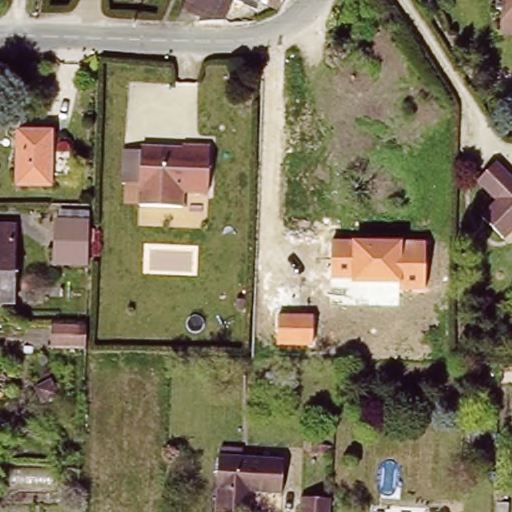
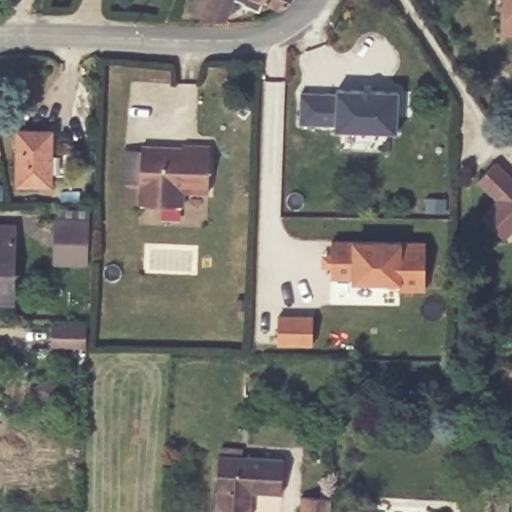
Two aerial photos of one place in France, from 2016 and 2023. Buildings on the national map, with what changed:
unchanged [(285,0),(279,8),(261,2),(257,11),(232,1),(223,23),(203,17),(184,12),(190,0),(285,0)]
unchanged [(509,17),(504,17),(503,0),(512,0),(512,39),(511,39),(509,17)]
new [(396,132),(334,130),(334,124),(299,123),(300,91),(336,92),(336,89),(397,92),(396,132)]
demolished [(339,100),(338,126),(324,126),(323,140),(271,138),(273,97),(325,99),(339,100)]
unchanged [(51,179),(18,178),(19,124),(51,124),(51,179)]
unchanged [(206,147),(204,190),(179,189),(179,204),(136,203),(137,145),(206,147)]
unchanged [(512,234),(507,239),(483,216),(495,199),(479,181),(499,156),(512,168),(512,234)]
unchanged [(52,257),(53,213),(85,213),(84,258),(52,257)]
unchanged [(14,296),(0,296),(0,219),(15,219),(14,296)]
unchanged [(332,240),(426,243),(424,290),(399,290),(399,283),(350,283),(349,278),(331,278),(332,240)]
unchanged [(278,314),(311,316),(311,346),(278,346),(278,314)]
unchanged [(83,324),(83,346),(45,344),(45,323),(83,324)]
unchanged [(248,512),(212,512),(216,449),(264,453),(281,454),(279,488),(262,487),(250,486),(248,512)]
unchanged [(301,491),(329,494),(328,512),(299,512),(301,491)]

